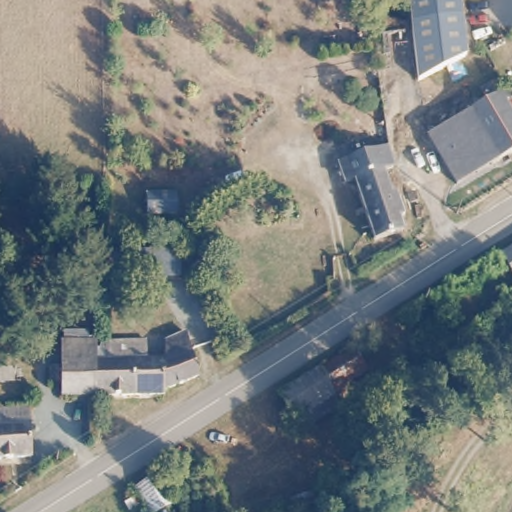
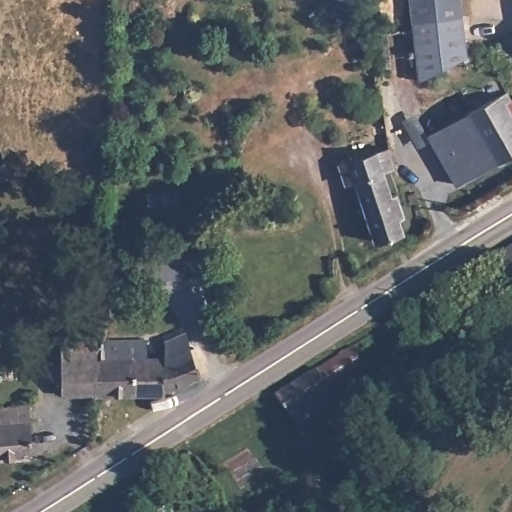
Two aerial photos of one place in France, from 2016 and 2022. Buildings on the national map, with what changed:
unchanged [(459,0),(462,11),(414,22),(413,22),(408,0),(459,0)]
unchanged [(413,22),(414,22),(462,11),(472,50),(445,64),(426,74),(413,22)]
unchanged [(454,181),(428,131),(467,110),(505,89),(512,100),(512,150),(454,181)]
unchanged [(402,210),(396,211),(402,228),(374,239),(353,180),(380,167),(389,190),(395,187),(402,210)]
unchanged [(502,245),(512,239),(512,262),(502,245)]
unchanged [(109,248),(164,248),(178,248),(175,271),(164,271),(109,271),(109,248)]
unchanged [(432,298),(451,328),(418,349),(398,318),(432,298)]
unchanged [(157,335),(157,354),(172,353),(172,341),(189,335),(198,373),(171,386),(171,390),(141,391),(140,336),(157,335)]
unchanged [(103,336),(103,353),(103,391),(71,392),(71,380),(59,380),(56,363),(69,363),(71,337),(103,336)]
unchanged [(103,353),(113,352),(111,337),(140,336),(141,391),(103,391),(103,353)]
unchanged [(357,342),(369,363),(349,375),(357,386),(346,393),(348,398),(306,425),(282,390),(322,364),(357,342)]
unchanged [(35,452),(0,455),(0,405),(31,404),(35,452)]
unchanged [(168,483),(169,498),(175,503),(172,510),(161,511),(156,501),(151,503),(140,481),(156,468),(168,483)]
unchanged [(291,500),(326,484),(335,504),(319,512),(297,512),(291,500)]

